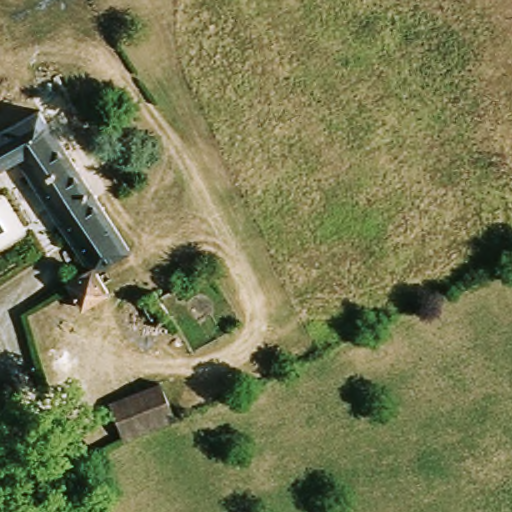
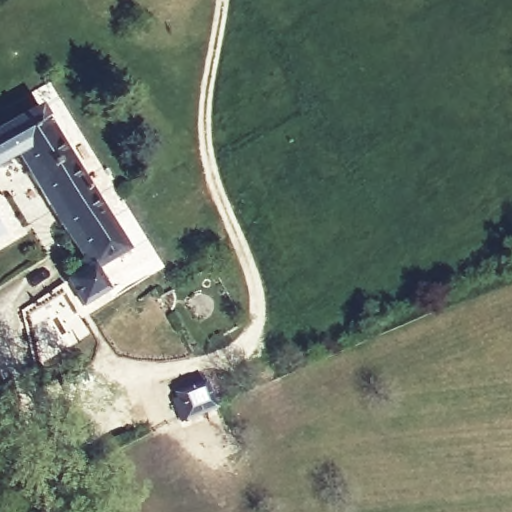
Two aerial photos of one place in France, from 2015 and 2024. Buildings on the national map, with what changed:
unchanged [(16,148),(0,157),(0,121),(37,100),(122,238),(99,253),(87,260),(83,254),(16,148)]
unchanged [(93,262),(108,286),(76,306),(62,282),(93,262)]
demolished [(121,434),(107,399),(155,377),(171,412),(121,434)]

